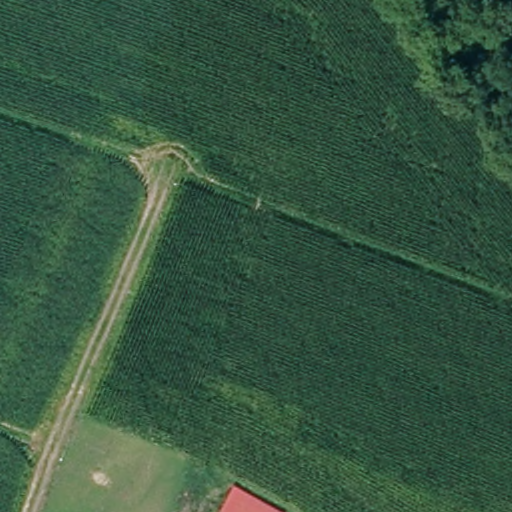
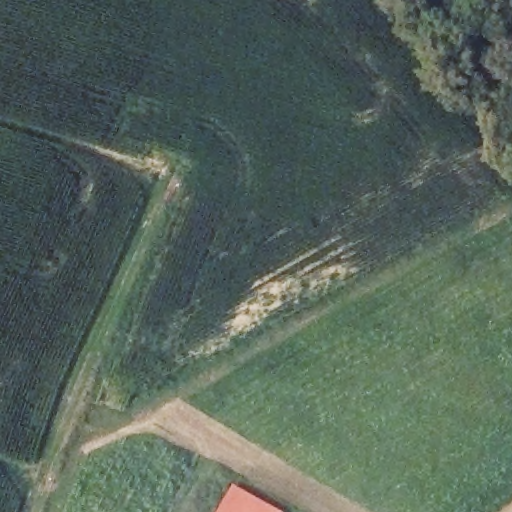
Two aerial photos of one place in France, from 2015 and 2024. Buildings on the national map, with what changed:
unchanged [(281,512),(219,512),(235,485),(281,512)]

